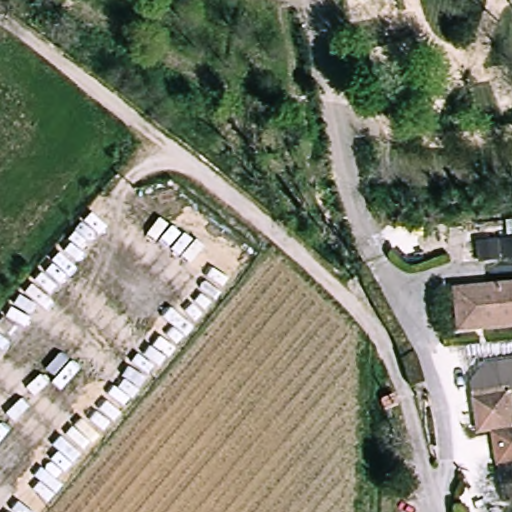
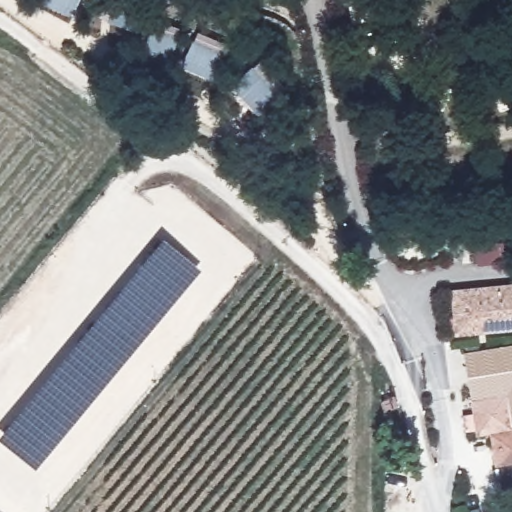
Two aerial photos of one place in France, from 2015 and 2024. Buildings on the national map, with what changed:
new [(162,235),(201,269),(35,468),(0,439),(0,434),(162,235)]
unchanged [(455,331),(452,288),(512,283),(512,326),(455,331)]
unchanged [(485,372),(512,367),(512,432),(510,433),(506,399),(475,404),(473,388),(485,372)]
unchanged [(510,433),(512,432),(512,502),(501,504),(493,433),(479,434),(475,404),(506,399),(510,433)]

